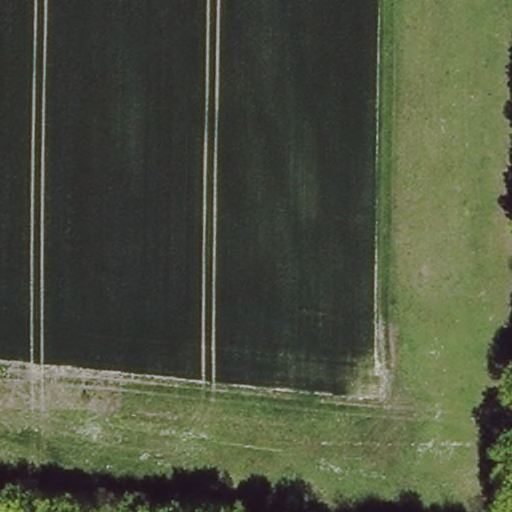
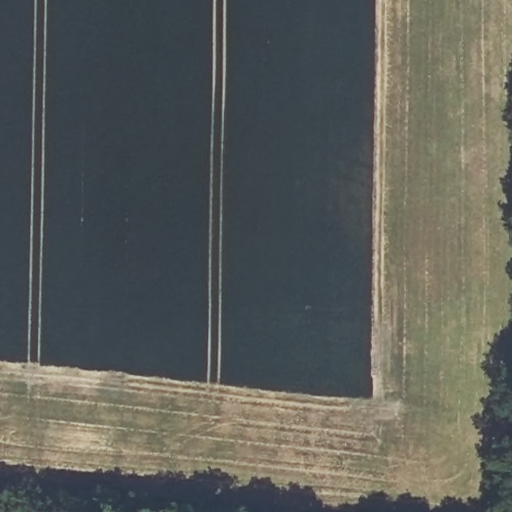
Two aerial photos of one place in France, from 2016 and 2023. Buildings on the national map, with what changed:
[]

